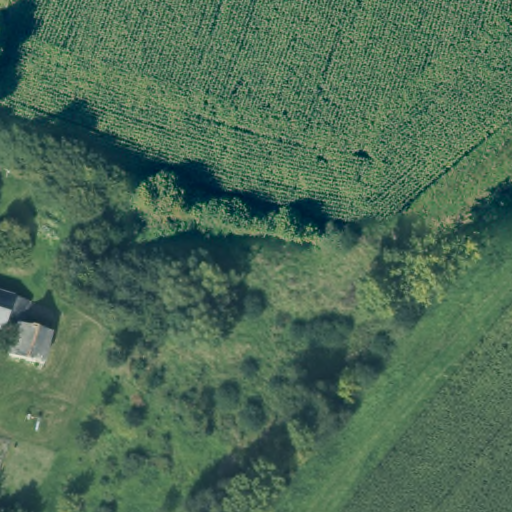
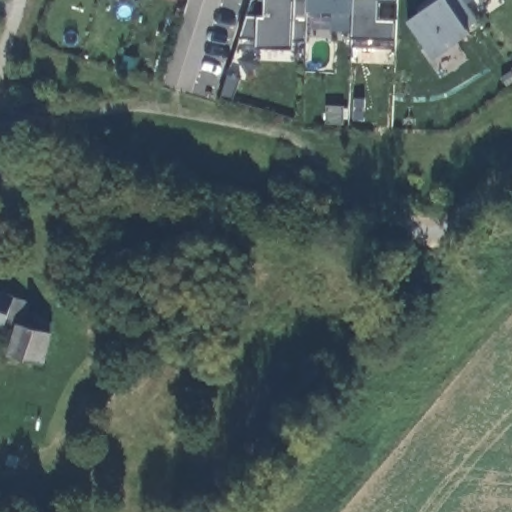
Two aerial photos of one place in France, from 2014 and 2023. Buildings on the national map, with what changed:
new [(308,12),(305,42),(293,42),(293,50),(257,50),(257,39),(239,39),(252,0),(308,0),(308,12)]
new [(352,15),(353,15),(351,32),(331,31),(336,14),(308,12),(308,0),(352,0),(352,15)]
new [(351,47),(351,32),(353,15),(353,0),(398,0),(398,4),(380,2),(380,20),(398,21),(397,40),(396,50),(378,49),(351,47)]
new [(408,23),(442,0),(447,0),(448,1),(450,0),(464,0),(467,5),(480,21),(468,30),(471,35),(435,60),(408,23)]
new [(467,5),(464,0),(474,0),(467,5)]
unchanged [(22,325),(51,333),(44,365),(9,356),(16,327),(6,324),(4,331),(0,330),(0,294),(30,303),(22,325)]

